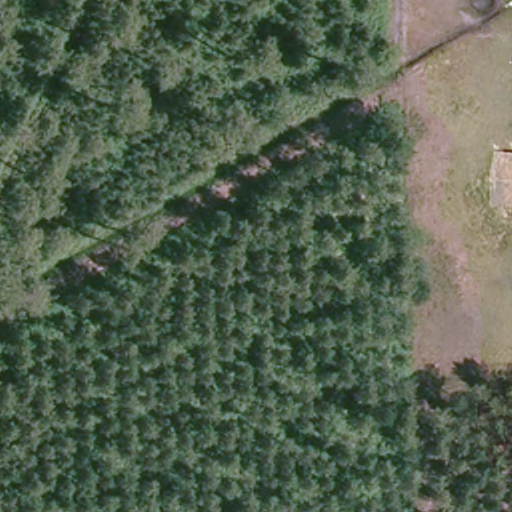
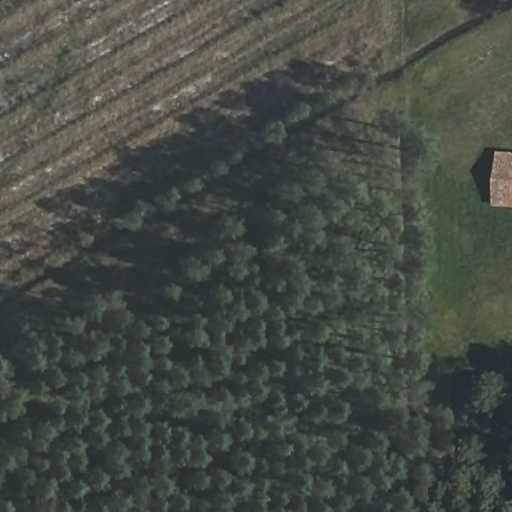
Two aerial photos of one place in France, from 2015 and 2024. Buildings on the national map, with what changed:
unchanged [(512,208),(488,207),(495,153),(512,155),(512,208)]

